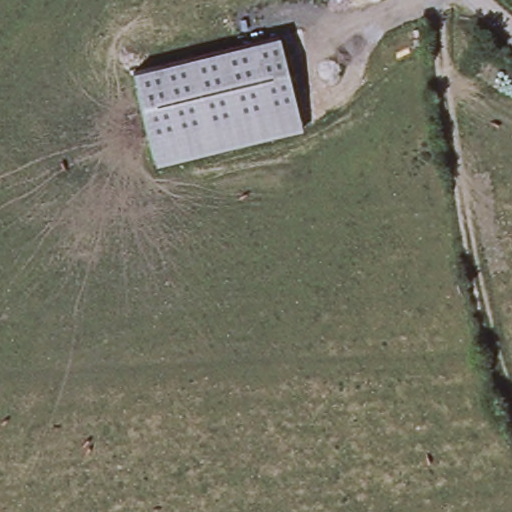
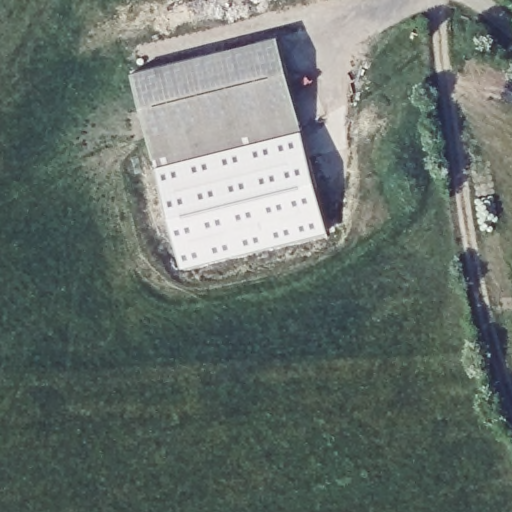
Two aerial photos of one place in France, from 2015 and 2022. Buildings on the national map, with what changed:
unchanged [(301,127),(154,164),(130,69),(276,32),(301,127)]
new [(326,237),(178,271),(154,164),(301,127),(326,237)]

